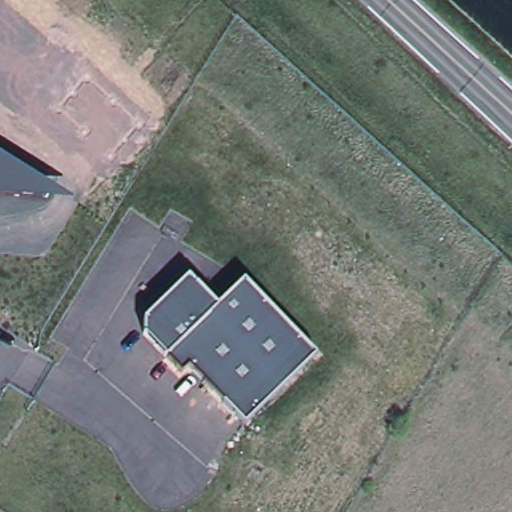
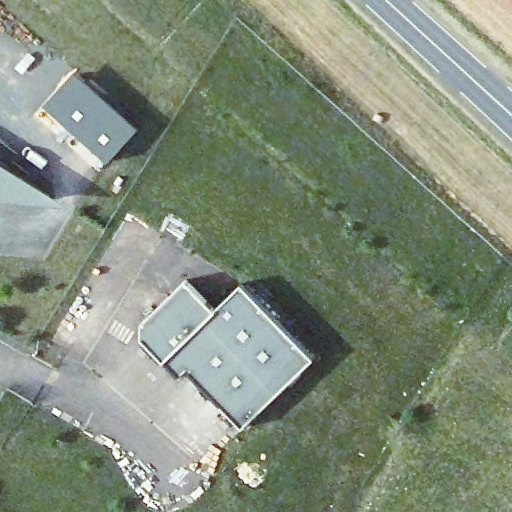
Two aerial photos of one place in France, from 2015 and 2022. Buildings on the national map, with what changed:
new [(46,104),(76,71),(141,128),(109,161),(46,104)]
unchanged [(73,207),(0,201),(0,160),(73,207)]
unchanged [(244,426),(188,368),(180,375),(144,336),(145,320),(189,279),(216,309),(243,283),(314,359),(244,426)]

